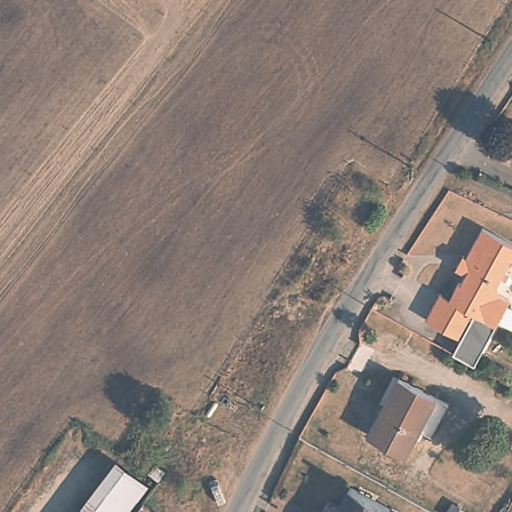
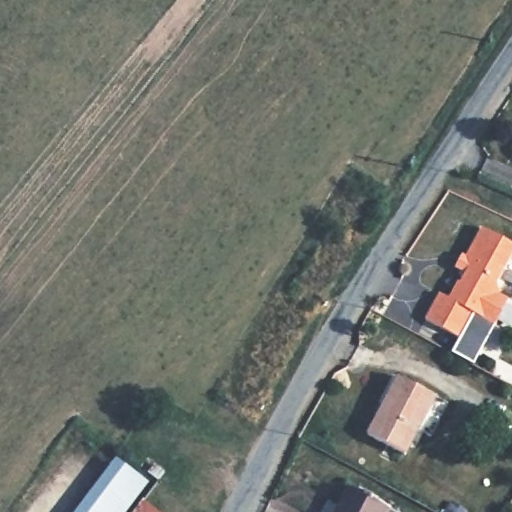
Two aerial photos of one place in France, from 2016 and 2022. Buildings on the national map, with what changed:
unchanged [(512,236),(512,247),(498,274),(501,294),(512,299),(512,302),(480,362),(467,356),(462,353),(468,342),(429,321),(444,295),(452,298),(472,266),(458,258),(462,251),(467,254),(484,222),(512,236)]
unchanged [(403,452),(368,431),(397,377),(434,397),(403,452)]
unchanged [(149,485),(128,512),(75,512),(115,460),(149,485)]
unchanged [(387,509),(393,512),(335,512),(347,489),(387,509)]
unchanged [(159,512),(134,512),(142,500),(159,512)]

